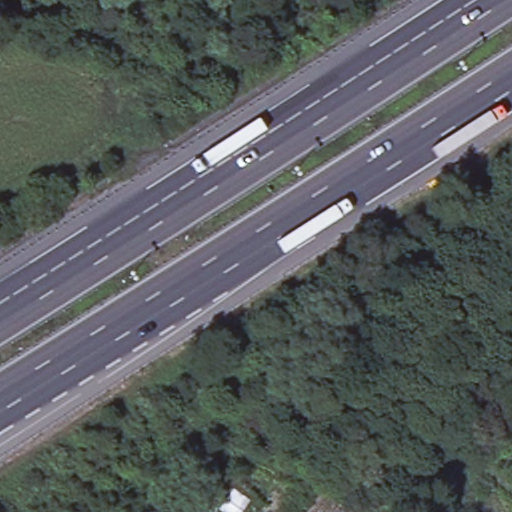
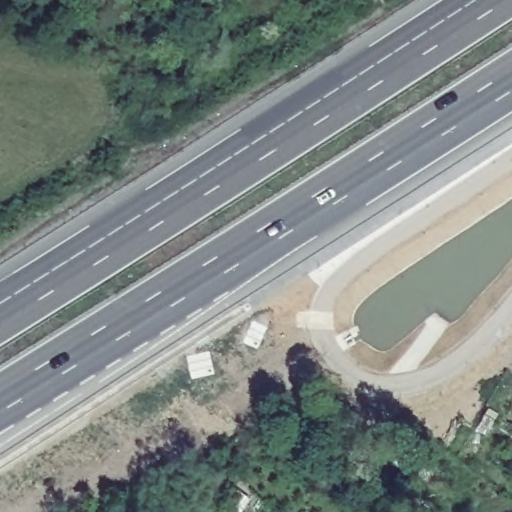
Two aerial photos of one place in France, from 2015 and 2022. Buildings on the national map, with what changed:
unchanged [(243,512),(221,512),(233,485),(253,496),(243,512)]

